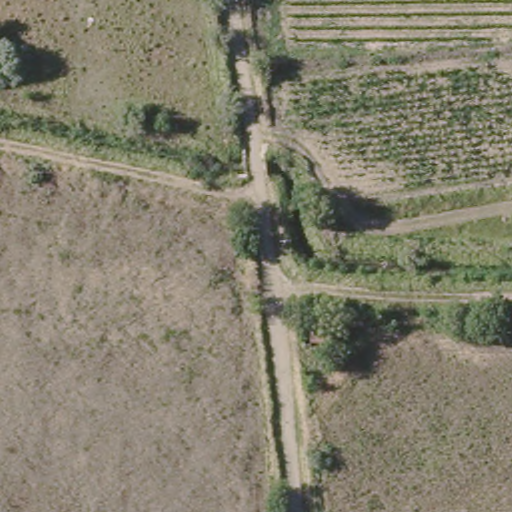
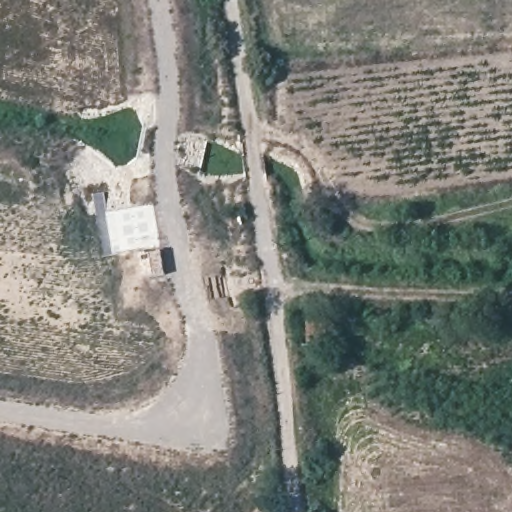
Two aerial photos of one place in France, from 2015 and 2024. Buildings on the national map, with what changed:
new [(155,207),(162,249),(114,257),(107,215),(155,207)]
demolished [(331,321),(330,340),(310,340),(310,330),(310,320),(331,321)]

